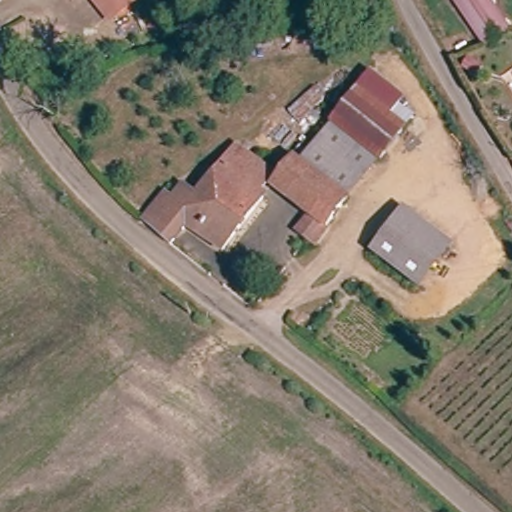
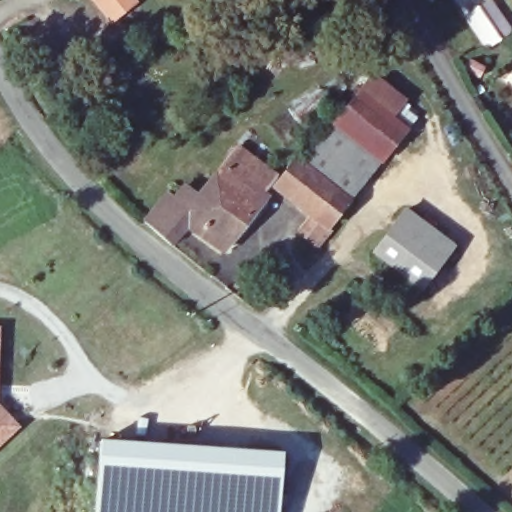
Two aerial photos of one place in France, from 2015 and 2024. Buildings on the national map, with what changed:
unchanged [(107,0),(140,0),(121,16),(107,0)]
unchanged [(455,0),(496,0),(512,23),(512,32),(489,48),(455,0)]
unchanged [(376,178),(330,137),(367,96),(413,135),(408,139),(416,148),(401,167),(392,160),(376,178)]
unchanged [(315,213),(282,185),(307,158),(309,161),(330,137),(376,178),(356,200),(332,227),(317,243),(303,229),(315,213)]
unchanged [(270,175),(259,186),(269,197),(221,251),(190,225),(173,244),(147,217),(174,190),(179,194),(192,179),(200,187),(237,147),(270,175)]
unchanged [(454,246),(419,285),(374,248),(409,209),(454,246)]
new [(0,446),(0,407),(19,428),(0,446)]
new [(98,431),(130,434),(123,512),(91,512),(98,431)]
new [(130,434),(282,448),(276,512),(123,512),(130,434)]

